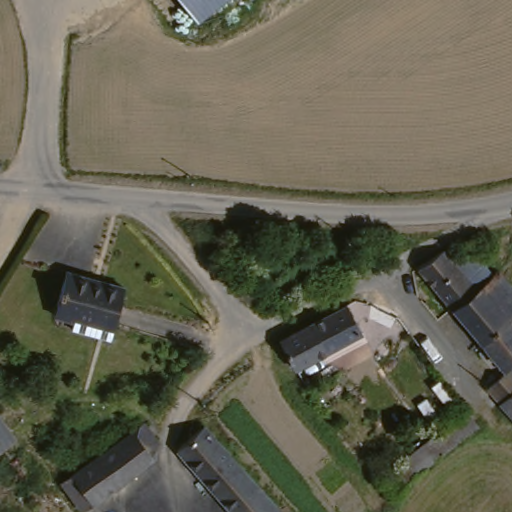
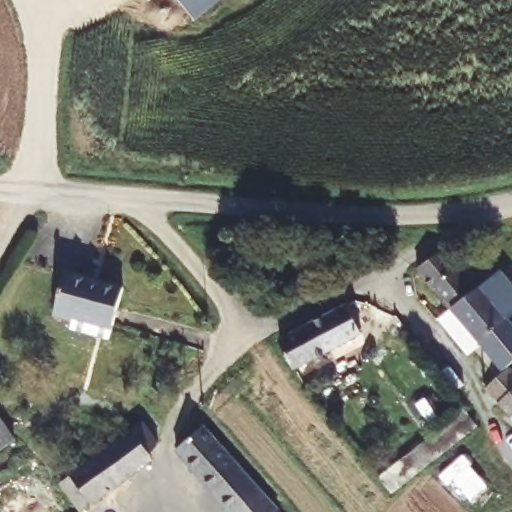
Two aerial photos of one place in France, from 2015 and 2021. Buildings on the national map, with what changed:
unchanged [(190,0),(225,0),(204,17),(190,0)]
unchanged [(448,248),(460,259),(476,245),(501,271),(486,283),(481,287),(457,306),(423,264),(448,248)]
unchanged [(66,268),(127,282),(117,323),(82,314),(77,318),(54,312),(66,268)]
unchanged [(505,269),(512,278),(512,313),(486,283),(501,271),(505,269)]
unchanged [(512,319),(485,340),(457,306),(481,287),(486,283),(512,313),(512,319)]
unchanged [(312,325),(346,306),(362,335),(327,353),(312,325)]
unchanged [(506,401),(490,384),(510,367),(485,340),(512,319),(512,408),(508,403),(506,401)]
unchanged [(281,343),(312,325),(327,353),(296,370),(289,360),(281,343)]
unchanged [(384,469),(471,400),(472,402),(483,418),(397,485),(384,469)]
unchanged [(17,437),(0,449),(0,415),(17,437)]
unchanged [(101,512),(92,512),(85,504),(77,510),(56,480),(141,418),(155,437),(149,456),(104,490),(114,503),(101,512)]
unchanged [(181,446),(207,424),(240,460),(283,507),(287,512),(238,512),(181,446)]

